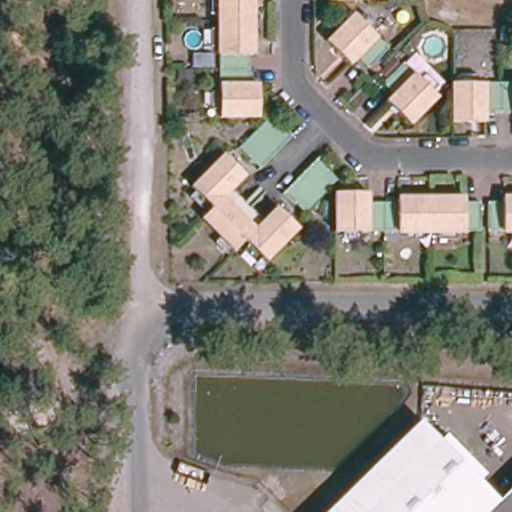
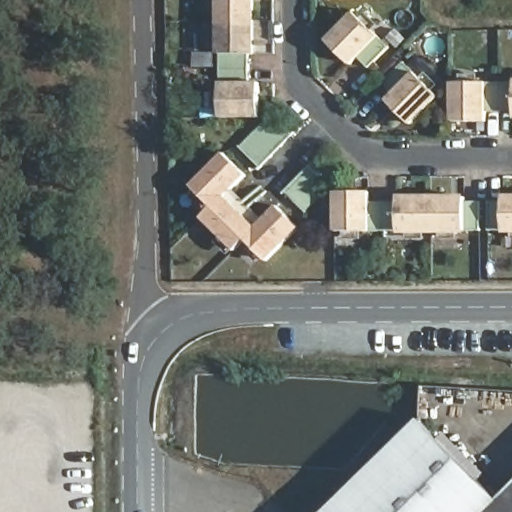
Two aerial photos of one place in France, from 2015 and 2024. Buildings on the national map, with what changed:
unchanged [(253,0),(253,21),(220,21),(220,0),(253,0)]
unchanged [(368,68),(357,57),(350,64),(326,41),(354,13),(388,47),(368,68)]
unchanged [(253,54),(249,54),(249,69),(220,69),(220,21),(253,21),(253,54)]
unchanged [(439,97),(411,125),(387,101),(394,94),(384,84),(404,63),(439,97)]
unchanged [(220,69),(249,69),(249,84),(259,84),(259,118),(220,118),(220,69)]
unchanged [(452,122),(451,83),(501,82),(501,112),(487,112),(487,122),(452,122)]
unchanged [(501,112),(501,82),(512,82),(512,112),(501,112)]
unchanged [(273,115),(293,135),(261,167),(241,147),(270,118),(273,115)]
unchanged [(187,186),(219,153),(242,175),(221,196),(253,227),(273,206),(296,228),(263,261),(241,239),(230,251),(198,219),(209,207),(187,186)]
unchanged [(307,211),(287,192),(317,160),(337,179),(335,182),(307,211)]
unchanged [(335,231),(335,192),(369,192),(369,202),(384,202),(384,231),(335,231)]
unchanged [(432,231),(432,198),(465,197),(465,201),(480,201),(480,231),(432,231)]
unchanged [(489,231),(489,201),(504,201),(504,197),(512,197),(512,231),(489,231)]
unchanged [(384,231),(384,202),(399,202),(399,198),(432,198),(432,231),(384,231)]
unchanged [(500,500),(512,489),(512,512),(328,512),(421,420),(500,500)]

